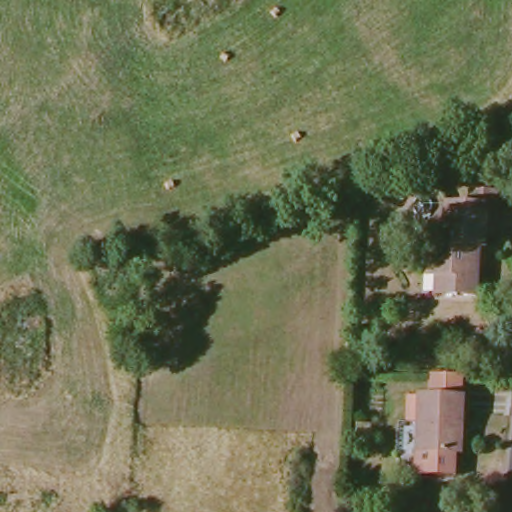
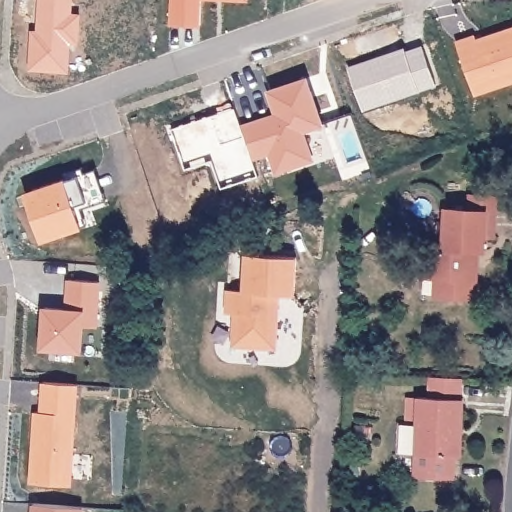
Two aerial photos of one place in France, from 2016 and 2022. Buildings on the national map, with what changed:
new [(46,30),(46,22),(41,22),(43,0),(76,0),(75,11),(83,12),(81,41),(73,40),(71,70),(33,67),(35,29),(46,30)]
new [(461,42),(478,36),(512,26),(512,83),(479,94),(461,42)]
new [(407,49),(408,53),(424,48),(438,85),(366,110),(352,68),(407,49)]
new [(268,118),(269,120),(281,116),(273,90),(310,78),(326,123),(306,130),(316,159),(279,171),(273,151),(256,157),(246,125),(268,118)]
new [(239,106),(246,125),(256,157),(262,175),(224,188),(215,160),(188,169),(174,128),(239,106)]
new [(39,205),(33,189),(42,187),(76,175),(74,169),(86,165),(88,171),(105,165),(115,196),(90,205),(96,221),(91,223),(50,237),(39,205)]
unchanged [(441,278),(425,276),(428,244),(439,245),(444,207),(466,209),(468,193),(496,196),(492,236),(482,235),(479,260),(466,259),(466,266),(474,267),(470,298),(439,296),(441,278)]
new [(233,345),(236,312),(227,312),(228,289),(245,290),(248,253),(298,256),(296,294),(276,293),(275,310),(279,315),(277,343),(271,347),(233,345)]
unchanged [(453,427),(449,430),(448,473),(412,472),(414,419),(404,419),(405,395),(416,396),(416,395),(428,395),(429,375),(458,376),(457,396),(459,396),(459,427),(453,427)]
new [(36,410),(43,411),(45,380),(79,383),(71,485),(31,482),(33,453),(34,445),(36,410)]
new [(32,506),(81,510),(81,512),(32,512),(32,506)]

